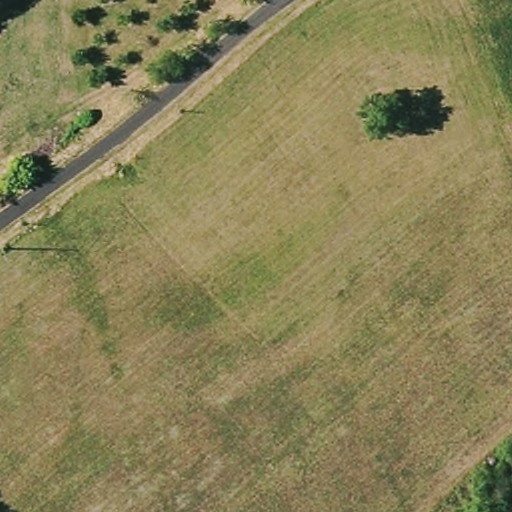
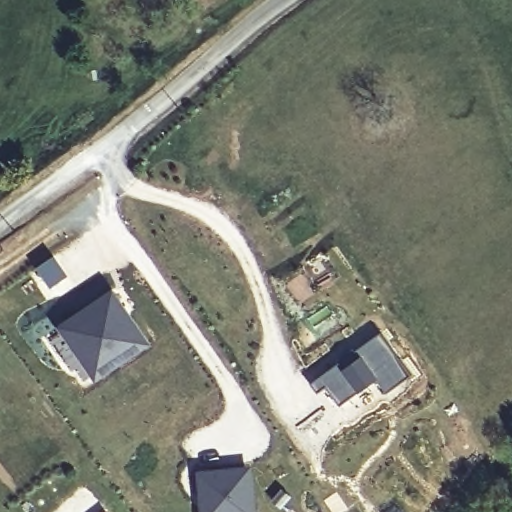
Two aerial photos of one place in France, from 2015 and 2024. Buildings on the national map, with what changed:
new [(52,255),(67,277),(47,291),(32,269),(52,255)]
new [(111,287),(150,344),(92,382),(53,326),(111,287)]
new [(340,360),(343,364),(358,353),(355,348),(379,332),(408,375),(384,393),(373,380),(338,403),(325,386),(317,392),(309,382),(340,360)]
new [(255,512),(197,512),(193,468),(252,463),(255,512)]
new [(107,512),(101,512),(105,509),(107,512)]

